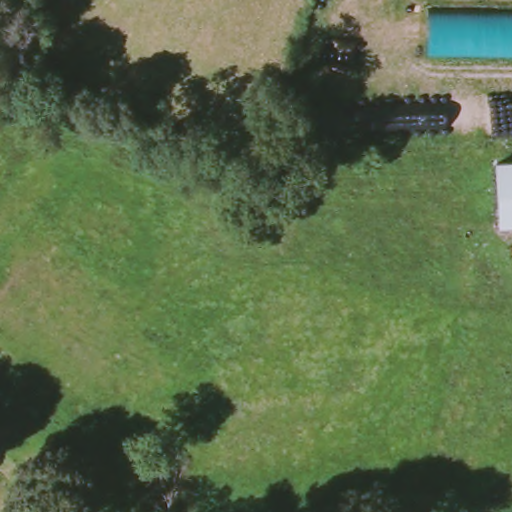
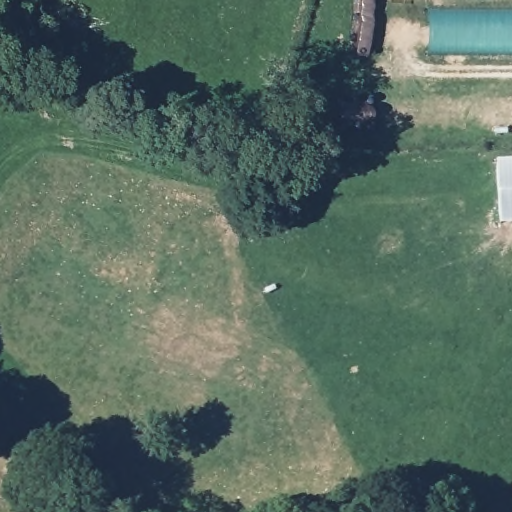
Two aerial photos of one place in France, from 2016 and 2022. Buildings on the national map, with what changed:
unchanged [(512,49),(431,47),(430,5),(512,7),(512,49)]
unchanged [(512,167),(512,196),(510,167),(512,167)]

